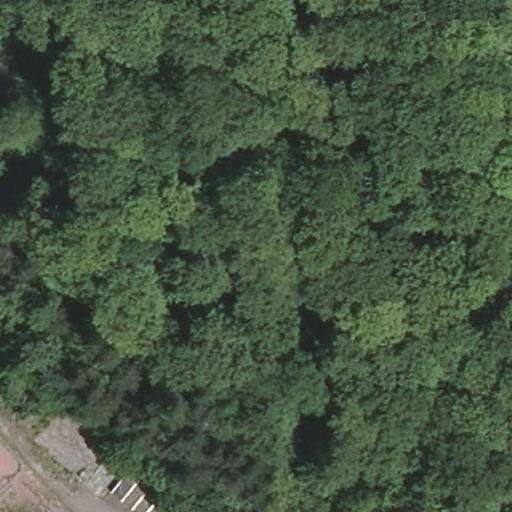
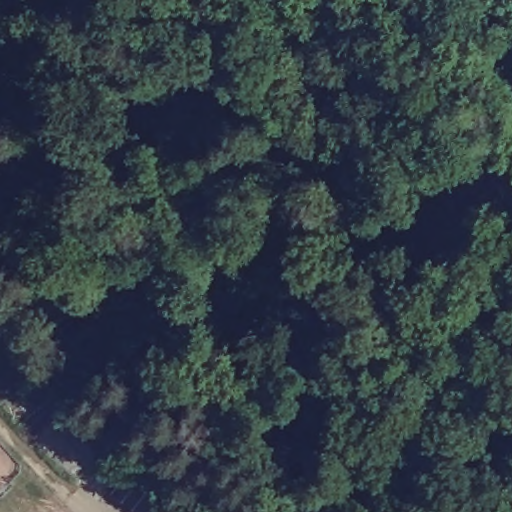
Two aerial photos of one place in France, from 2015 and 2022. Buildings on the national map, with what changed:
unchanged [(136,512),(106,488),(123,468),(181,512),(136,512)]

